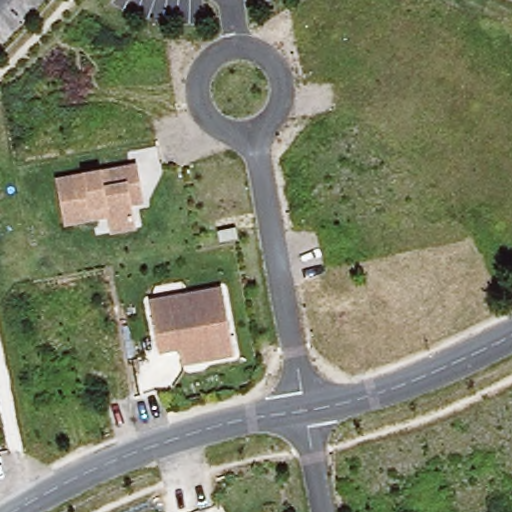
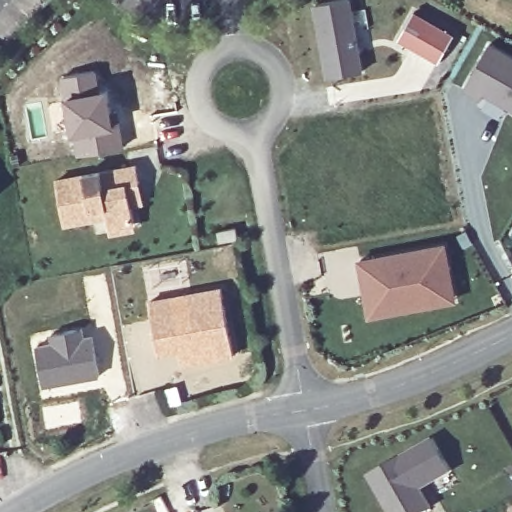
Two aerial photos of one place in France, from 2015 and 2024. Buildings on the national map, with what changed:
new [(347,0),(359,73),(326,78),(313,5),(344,0),(347,0)]
new [(411,14),(452,36),(437,64),(396,41),(411,14)]
new [(492,45),(512,56),(512,107),(487,92),(483,99),(466,89),(492,45)]
new [(117,121),(115,125),(74,135),(64,96),(62,97),(57,77),(97,69),(102,87),(110,85),(117,121)]
new [(115,125),(117,121),(120,120),(125,146),(78,155),(74,135),(115,125)]
unchanged [(131,200),(135,224),(111,228),(108,212),(65,220),(57,176),(137,161),(143,198),(131,200)]
unchanged [(236,229),(237,240),(220,242),(218,232),(236,229)]
new [(442,247),(449,287),(412,294),(413,303),(375,311),(371,287),(375,286),(373,278),(360,281),(357,262),(442,247)]
new [(373,278),(375,286),(371,287),(375,311),(413,303),(412,294),(449,287),(452,302),(367,317),(360,281),(373,278)]
unchanged [(180,350),(159,354),(150,302),(222,290),(235,356),(207,361),(182,365),(180,350)]
new [(85,326),(87,332),(93,331),(101,375),(45,385),(37,339),(85,326)]
new [(432,496),(424,483),(415,488),(426,507),(418,512),(385,512),(365,475),(428,439),(446,471),(453,485),(432,496)]

